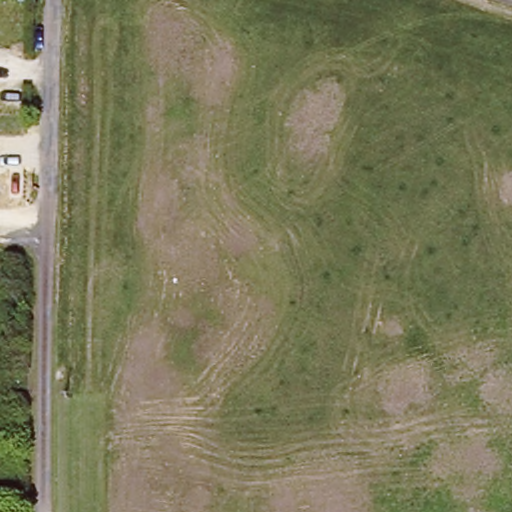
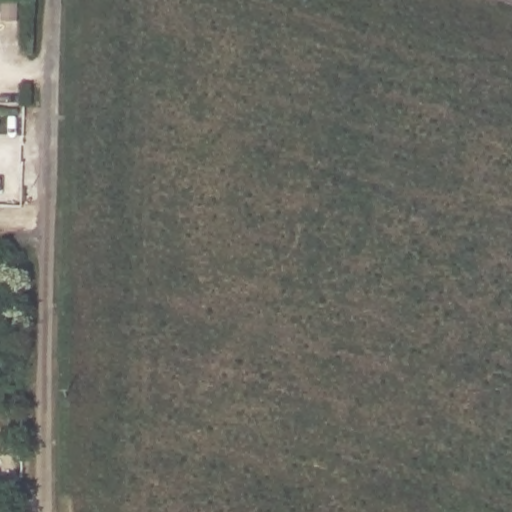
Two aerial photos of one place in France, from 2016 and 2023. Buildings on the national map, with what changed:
[]

